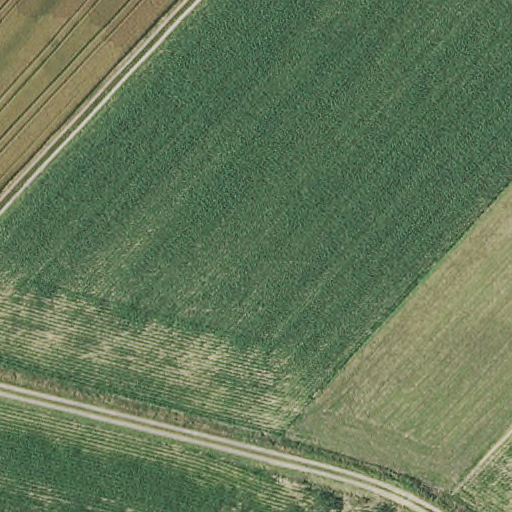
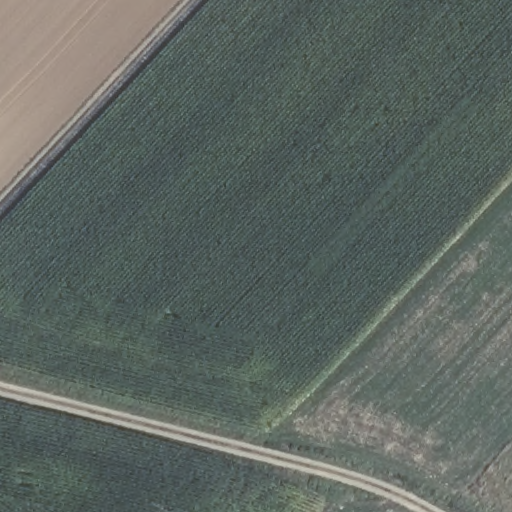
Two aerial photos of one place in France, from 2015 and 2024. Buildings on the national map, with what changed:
[]

